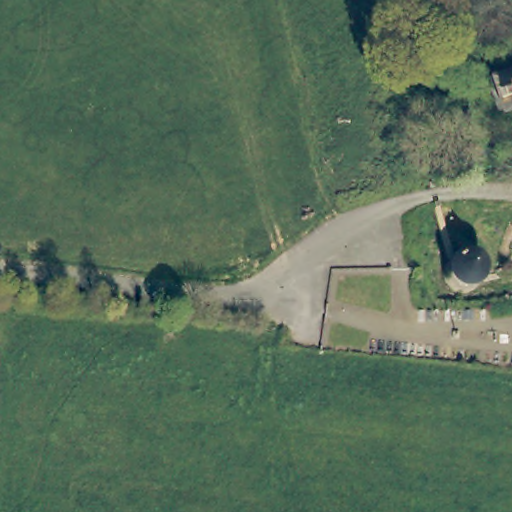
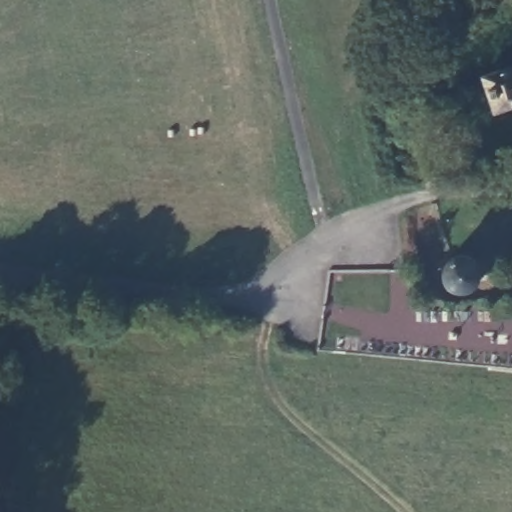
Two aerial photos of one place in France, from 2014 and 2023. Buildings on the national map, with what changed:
unchanged [(512,105),(496,110),(484,74),(512,64),(512,105)]
unchanged [(472,286),(466,289),(460,291),(454,290),(449,287),(444,282),(442,276),(442,270),(443,264),(447,259),(452,255),(458,253),(464,254),(470,256),(475,260),(478,265),(479,275),(476,282),(472,286)]

